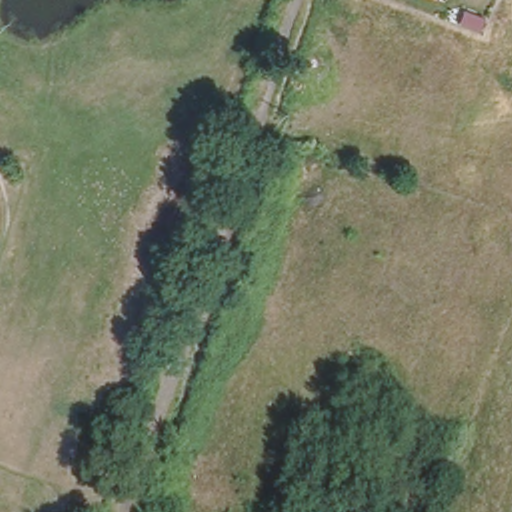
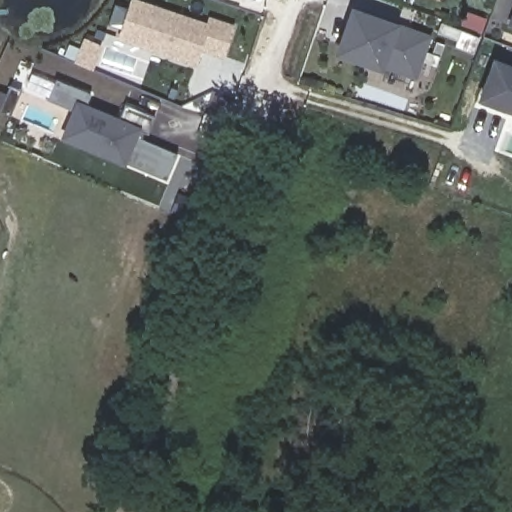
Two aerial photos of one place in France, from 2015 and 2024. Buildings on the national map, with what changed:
new [(223,59),(201,51),(196,67),(116,39),(124,18),(130,0),(142,0),(206,22),(209,16),(235,25),(229,42),(223,59)]
new [(413,82),(382,71),(335,54),(351,7),(398,24),(430,35),(413,82)]
new [(512,8),(512,28),(505,25),(512,8)]
new [(493,58),(512,65),(512,116),(476,103),(493,58)]
new [(60,139),(71,111),(47,101),(56,79),(91,94),(87,105),(119,118),(125,104),(154,116),(146,134),(144,133),(141,139),(178,154),(166,181),(126,164),(125,167),(60,139)]

